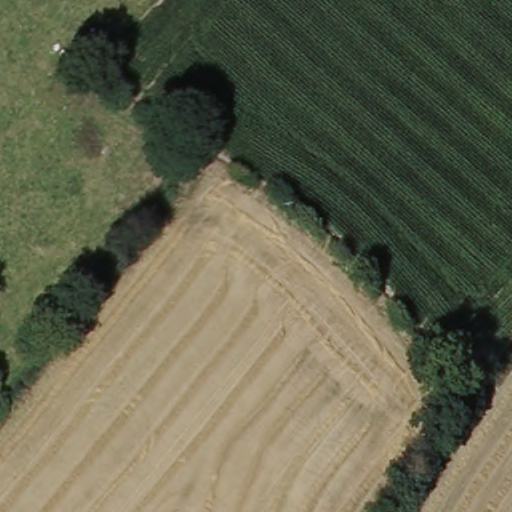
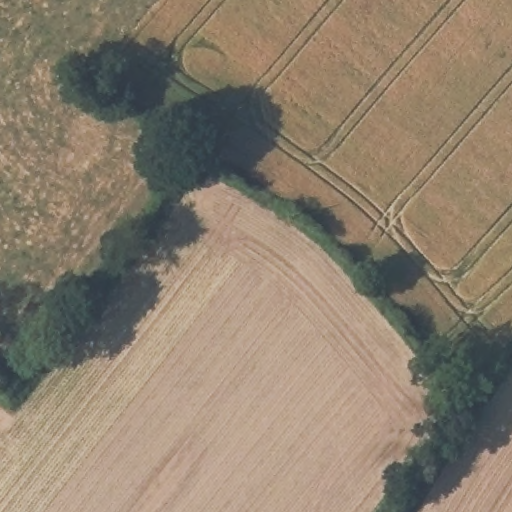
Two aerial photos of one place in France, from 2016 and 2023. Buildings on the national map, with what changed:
[]

